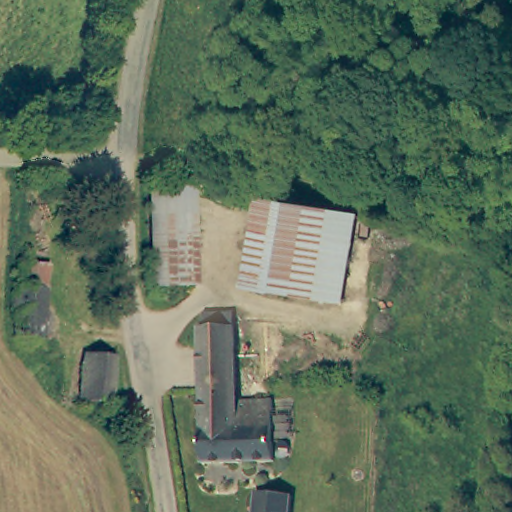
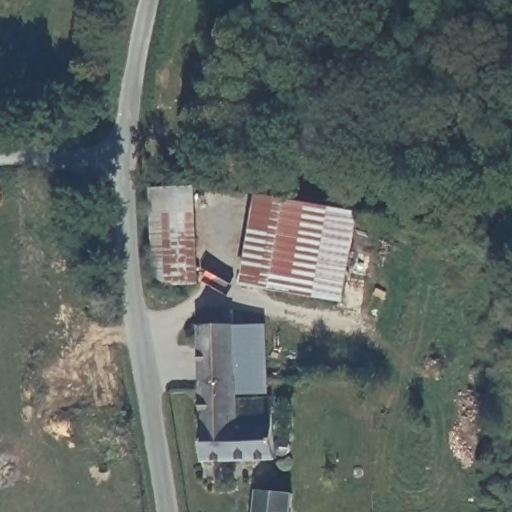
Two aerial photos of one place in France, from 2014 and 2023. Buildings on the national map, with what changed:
unchanged [(152,300),(152,281),(148,185),(193,185),(195,281),(172,281),(172,300),(152,300)]
unchanged [(289,291),(248,283),(240,282),(248,249),(258,196),(305,205),(289,291)]
unchanged [(354,214),(338,300),(289,291),(305,205),(354,214)]
unchanged [(270,439),(286,440),(289,446),(285,458),(200,460),(197,325),(202,325),(203,308),(232,308),(233,351),(234,370),(234,380),(235,396),(270,397),(270,439)]
new [(235,396),(234,380),(234,370),(233,351),(233,325),(267,325),(270,397),(235,396)]
unchanged [(112,399),(81,396),(86,350),(117,353),(112,399)]
unchanged [(254,512),(255,495),(290,498),(289,512),(254,512)]

